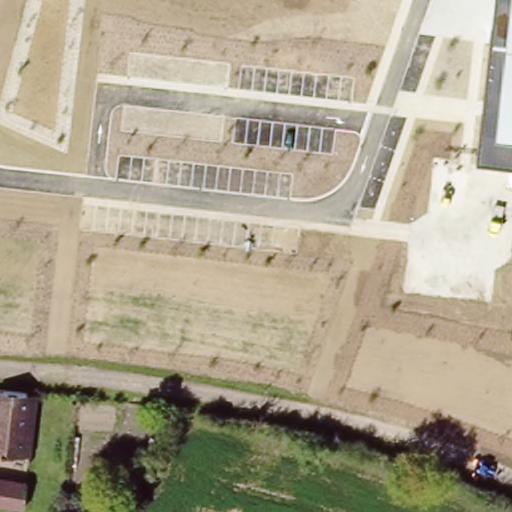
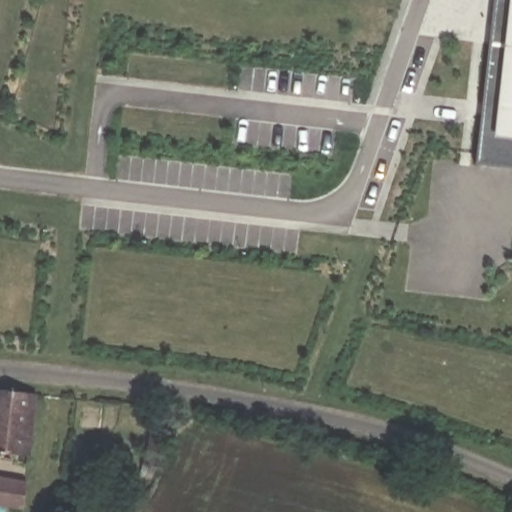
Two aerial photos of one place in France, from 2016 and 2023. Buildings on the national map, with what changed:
unchanged [(474,164),(494,0),(512,0),(512,167),(474,164)]
unchanged [(29,430),(25,455),(0,451),(0,390),(25,394),(33,395),(29,430)]
unchanged [(22,512),(0,508),(0,481),(27,486),(22,512)]

